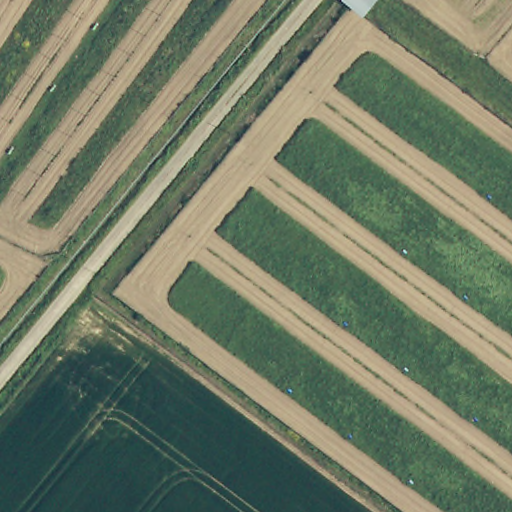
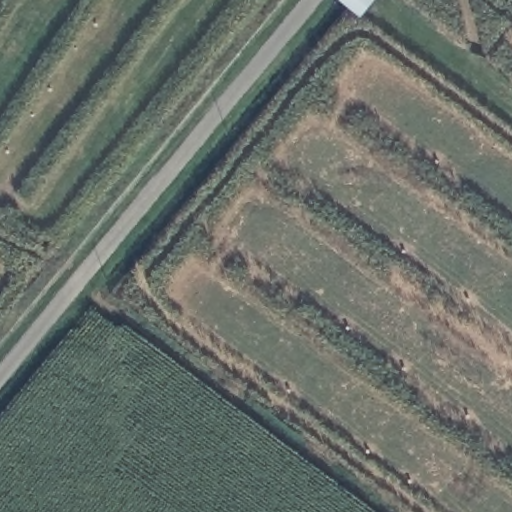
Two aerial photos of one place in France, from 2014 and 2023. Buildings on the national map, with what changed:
unchanged [(342,0),(373,0),(359,16),(342,0)]

